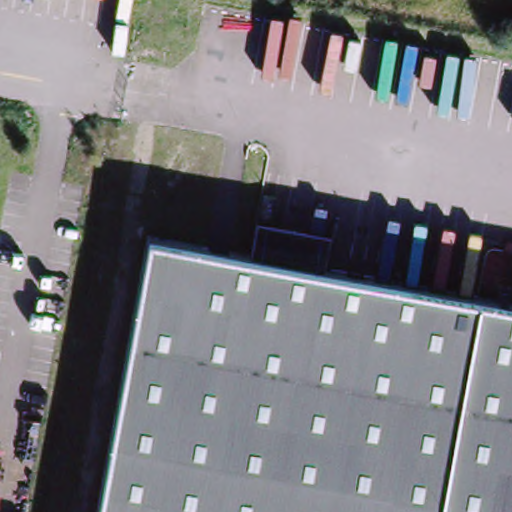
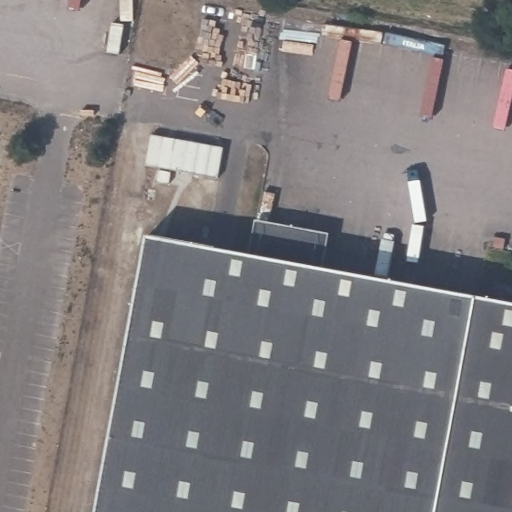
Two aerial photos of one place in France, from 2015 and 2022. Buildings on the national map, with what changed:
unchanged [(330,237),(325,267),(251,253),(258,222),(330,237)]
unchanged [(329,268),(512,302),(512,512),(97,512),(148,235),(251,253),(329,268)]

